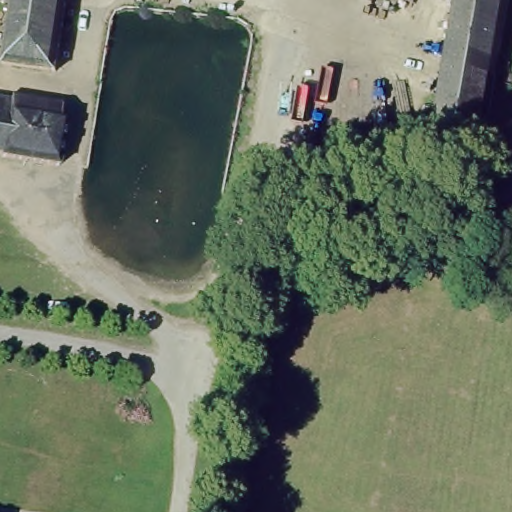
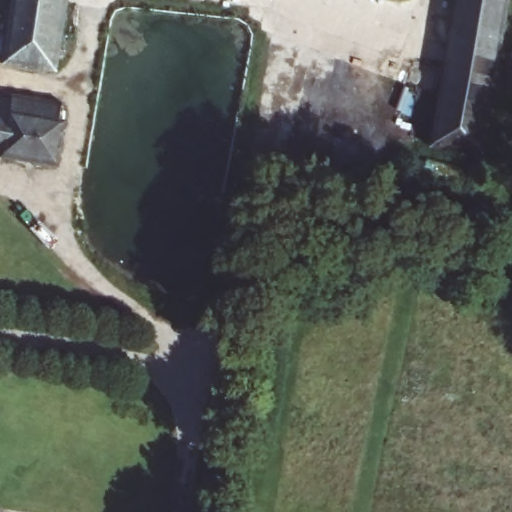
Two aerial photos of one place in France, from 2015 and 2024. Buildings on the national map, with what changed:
unchanged [(3,61),(10,0),(69,0),(59,70),(3,61)]
unchanged [(426,138),(447,0),(504,0),(484,148),(426,138)]
unchanged [(15,91),(59,99),(57,116),(65,119),(55,169),(3,159),(0,156),(0,96),(10,98),(15,91)]

